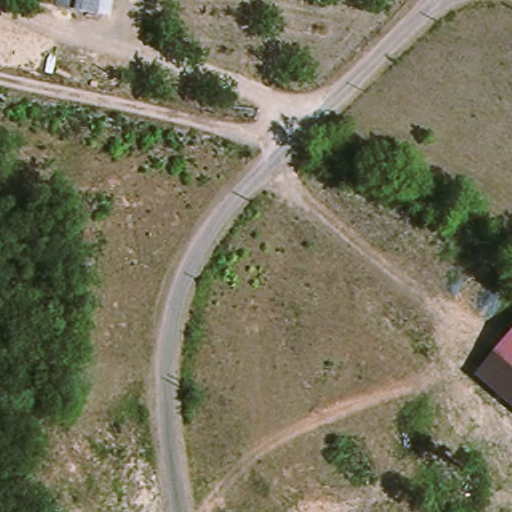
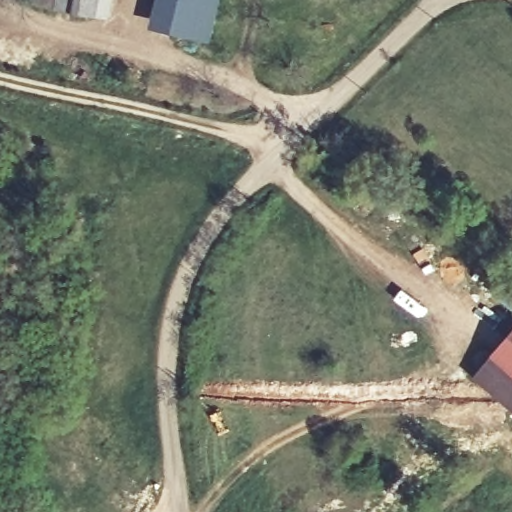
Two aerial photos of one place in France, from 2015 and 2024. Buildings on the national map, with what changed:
unchanged [(92,9),(55,3),(55,0),(93,0),(92,9)]
new [(93,0),(116,0),(114,14),(92,9),(93,0)]
new [(211,42),(149,25),(155,0),(221,0),(211,42)]
unchanged [(492,355),(512,330),(512,373),(492,355)]
unchanged [(511,406),(512,404),(512,406),(511,406)]

